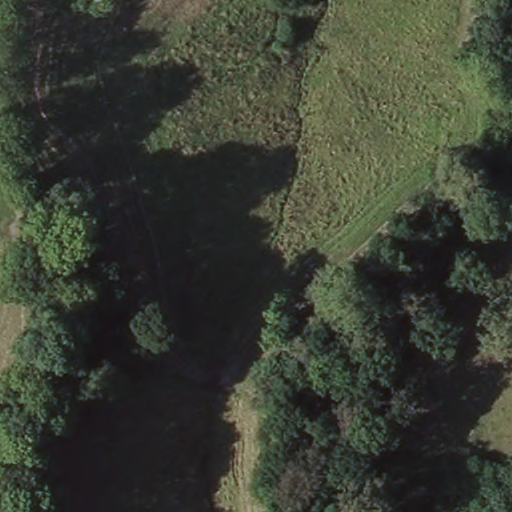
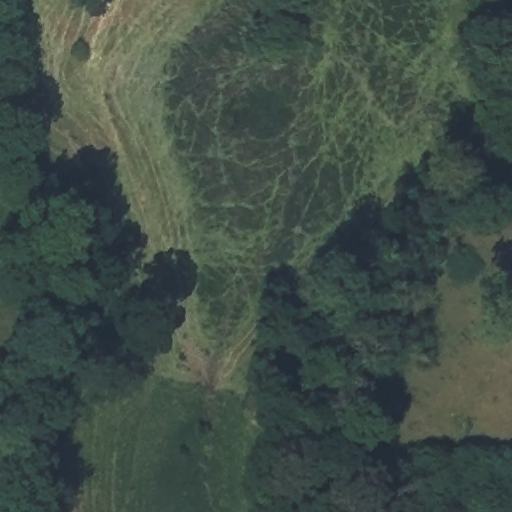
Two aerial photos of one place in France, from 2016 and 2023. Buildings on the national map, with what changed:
[]

